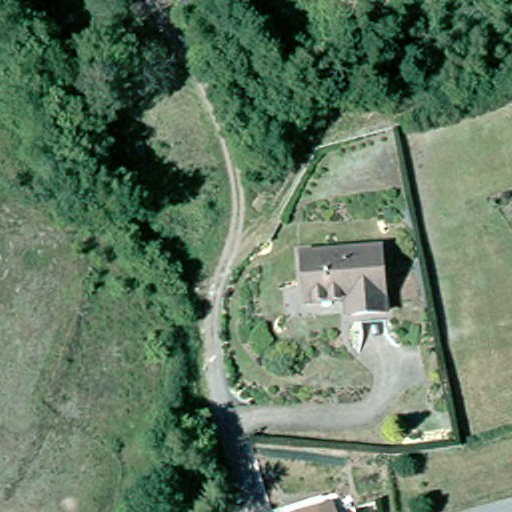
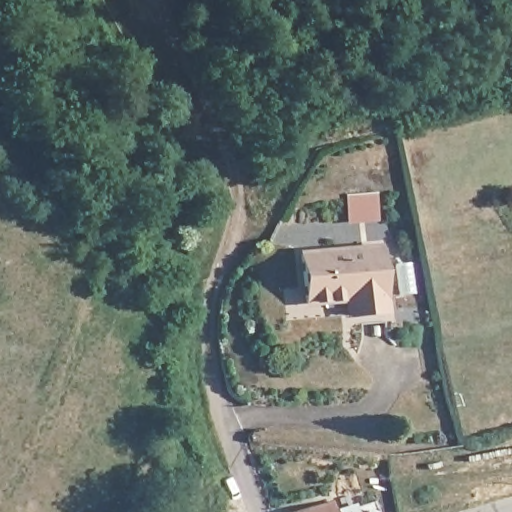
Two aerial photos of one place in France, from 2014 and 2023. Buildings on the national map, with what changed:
unchanged [(185,0),(205,0),(218,31),(197,40),(180,2),(185,0)]
new [(346,194),(379,191),(382,220),(350,222),(346,194)]
unchanged [(330,296),(300,297),(298,246),(377,244),(380,309),(342,311),(330,311),(330,296)]
unchanged [(329,498),(332,510),(333,512),(281,512),(329,498)]

